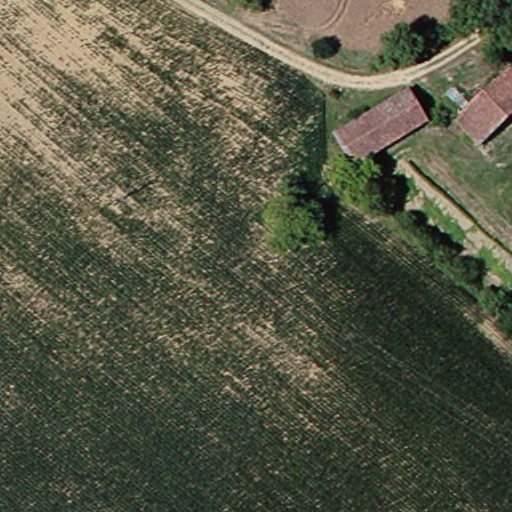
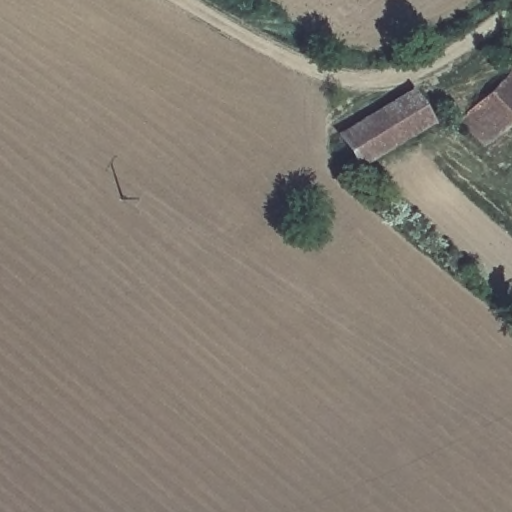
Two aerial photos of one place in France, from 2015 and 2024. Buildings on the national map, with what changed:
unchanged [(464,115),(512,70),(512,120),(489,141),(464,115)]
unchanged [(411,90),(431,121),(358,166),(339,135),(363,119),(411,90)]

